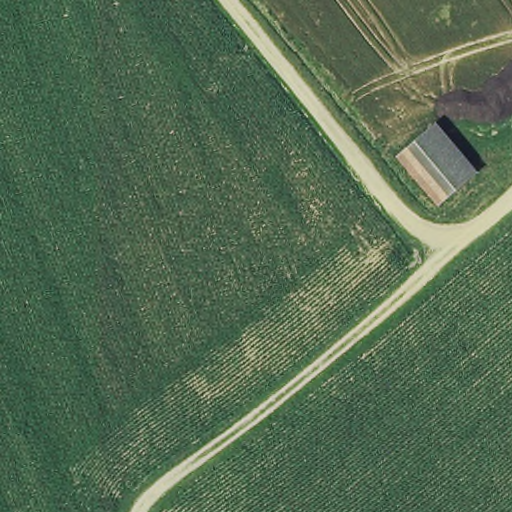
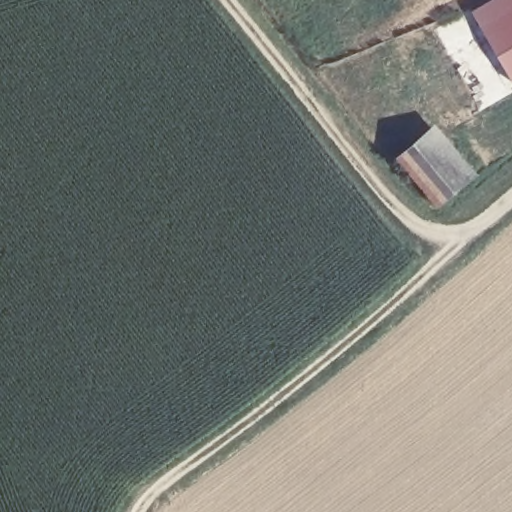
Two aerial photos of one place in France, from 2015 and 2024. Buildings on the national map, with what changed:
new [(490,0),(512,0),(512,78),(473,10),(490,0)]
unchanged [(399,156),(441,120),(476,174),(447,205),(399,156)]

